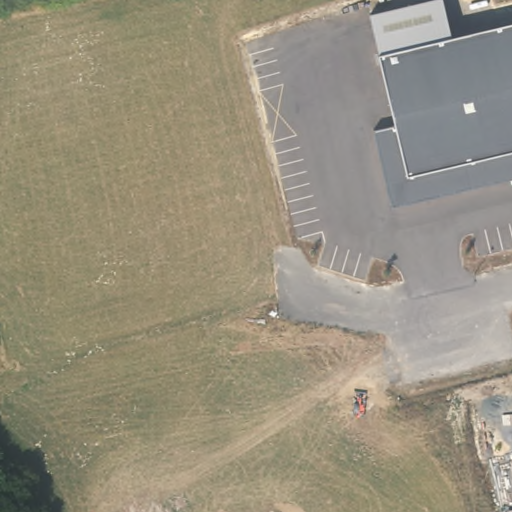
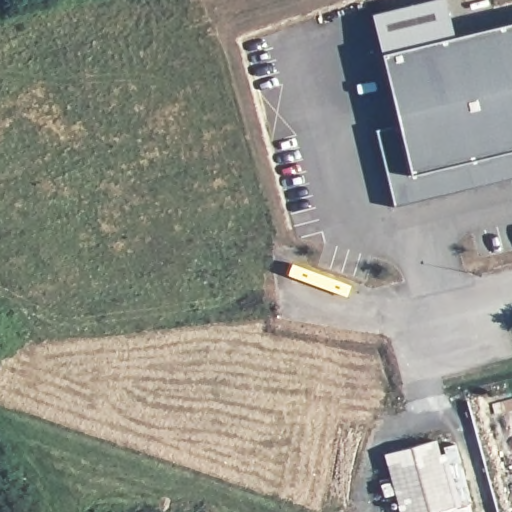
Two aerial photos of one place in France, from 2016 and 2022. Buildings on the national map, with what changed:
unchanged [(392,206),(375,130),(397,124),(380,55),(370,14),(433,0),(442,0),(451,39),(512,24),(512,178),(392,206)]
new [(437,512),(436,510),(429,512),(396,512),(380,452),(434,439),(440,459),(443,459),(440,447),(454,443),(471,512),(437,512)]

